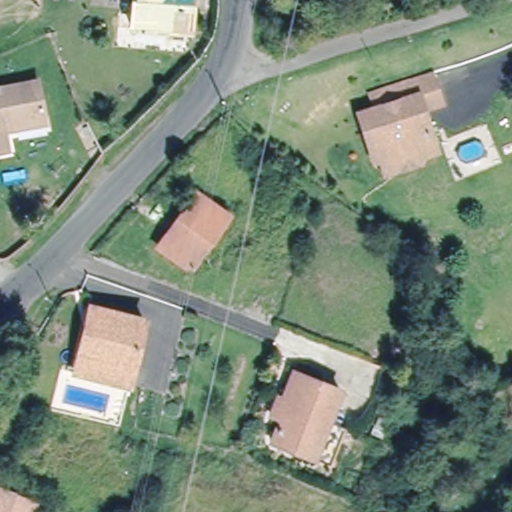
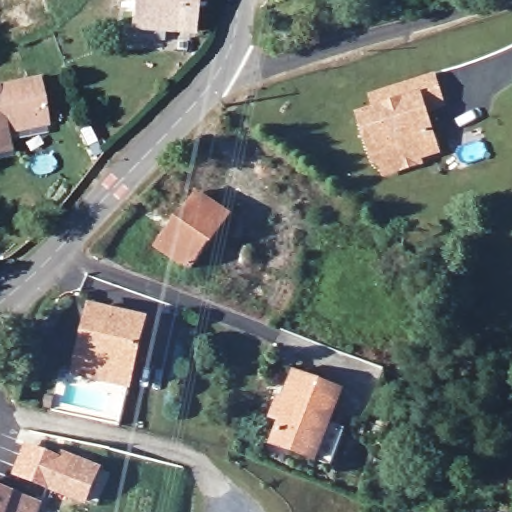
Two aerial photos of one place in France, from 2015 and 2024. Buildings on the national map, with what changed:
unchanged [(187,39),(132,36),(134,0),(189,0),(187,39)]
unchanged [(36,79),(45,115),(17,122),(12,119),(5,121),(12,150),(0,152),(0,88),(36,79)]
unchanged [(417,157),(384,166),(378,167),(365,120),(380,116),(376,100),(438,82),(447,113),(427,119),(438,161),(422,165),(419,166),(417,157)]
unchanged [(194,196),(216,212),(226,219),(189,269),(157,247),(194,196)]
unchanged [(80,375),(82,359),(92,310),(143,320),(135,368),(132,384),(80,375)]
unchanged [(325,461),(308,455),(267,440),(275,418),(265,415),(271,397),(276,398),(285,370),(332,387),(322,417),(338,422),(325,461)]
new [(14,474),(25,443),(67,461),(57,491),(14,474)]
new [(103,468),(87,507),(57,491),(67,461),(60,457),(62,452),(103,468)]
unchanged [(37,512),(0,512),(0,493),(38,508),(37,512)]

